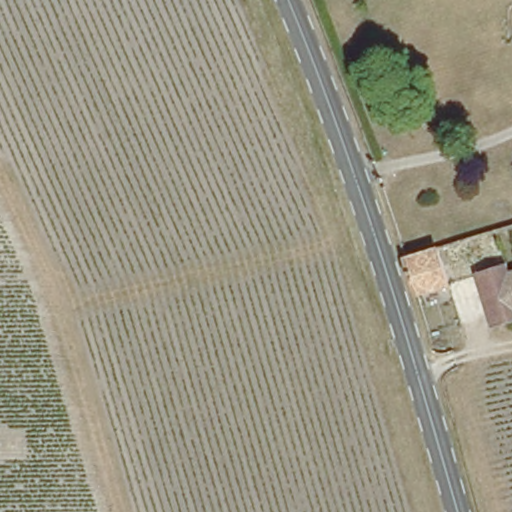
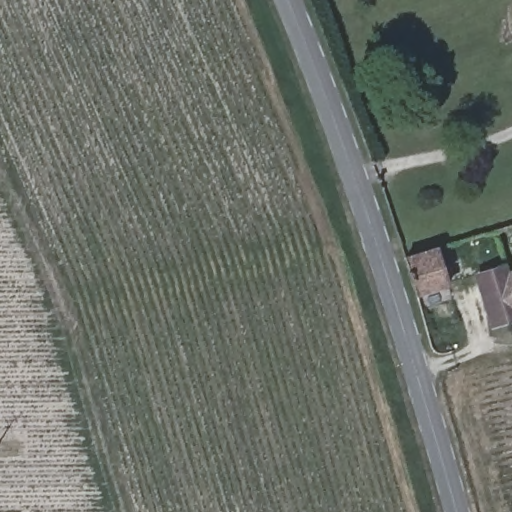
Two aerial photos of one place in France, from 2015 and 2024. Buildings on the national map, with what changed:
unchanged [(417,292),(407,251),(440,239),(454,281),(417,292)]
unchanged [(491,321),(476,267),(510,258),(511,264),(512,264),(512,315),(491,321)]

